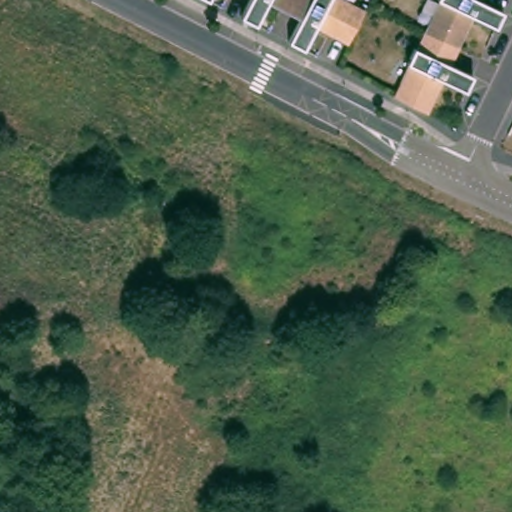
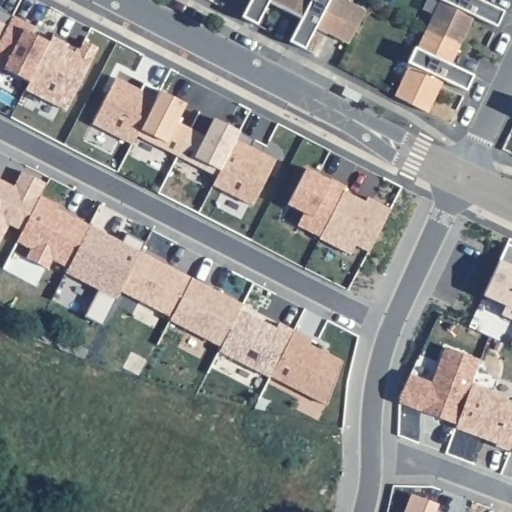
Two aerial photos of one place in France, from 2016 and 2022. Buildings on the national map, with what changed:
unchanged [(300,19),(268,2),(256,25),(241,17),(250,0),(310,0),(302,15),(300,19)]
unchanged [(357,25),(348,43),(316,26),(305,49),(289,41),(300,19),(302,15),(310,0),(346,0),(365,10),(357,25)]
unchanged [(482,0),(503,11),(496,26),(473,15),(457,48),(442,40),(426,33),(443,0),(482,0)]
new [(12,14),(0,38),(0,8),(12,14)]
new [(27,21),(35,25),(31,31),(49,40),(29,80),(0,65),(0,38),(12,14),(27,21)]
unchanged [(401,82),(411,63),(408,62),(416,47),(418,48),(426,33),(442,40),(457,48),(450,64),(473,75),(465,90),(442,80),(427,112),(407,102),(394,95),(401,82)]
new [(79,49),(83,40),(97,47),(66,109),(26,90),(30,80),(49,40),(51,36),(79,49)]
new [(115,75),(140,89),(144,81),(159,89),(132,142),(92,121),(115,75)]
new [(177,121),(190,127),(176,153),(136,135),(159,90),(186,104),(177,121)]
new [(190,127),(204,134),(214,116),(240,130),(217,174),(176,153),(190,127)]
new [(217,174),(240,130),(255,137),(250,145),(275,157),(252,204),(212,183),(217,174)]
new [(305,166),(330,179),(330,176),(346,184),(343,189),(320,235),(297,223),(303,211),(287,202),(305,166)]
new [(1,179),(7,181),(14,185),(22,169),(46,182),(40,194),(22,229),(9,222),(0,239),(0,178),(1,179)]
new [(320,235),(343,189),(365,200),(367,195),(390,207),(368,250),(355,243),(350,252),(319,236),(320,235)]
new [(22,229),(40,194),(57,202),(55,206),(89,224),(67,266),(52,257),(47,266),(26,255),(31,246),(16,240),(22,229)]
new [(67,266),(89,224),(121,240),(126,231),(145,240),(102,323),(85,315),(98,287),(65,270),(67,266)]
new [(512,244),(512,318),(501,312),(505,303),(482,293),(506,241),(512,244)]
new [(191,276),(171,315),(120,290),(140,251),(191,276)]
new [(191,276),(242,302),(240,307),(221,345),(170,318),(191,276)]
new [(221,345),(240,307),(276,326),(279,320),(294,328),(270,374),(270,375),(219,349),(221,345)]
new [(294,328),(311,337),(309,342),(342,359),(327,403),(270,374),(294,328)]
new [(400,394),(410,372),(431,380),(445,345),(480,357),(472,380),(456,422),(399,400),(400,394)]
new [(472,380),(493,388),(491,392),(512,400),(512,444),(510,449),(495,443),(496,440),(455,425),(456,422),(472,380)]
new [(512,444),(512,450),(510,449),(512,444)]
new [(438,502),(434,512),(403,512),(411,492),(438,502)]

